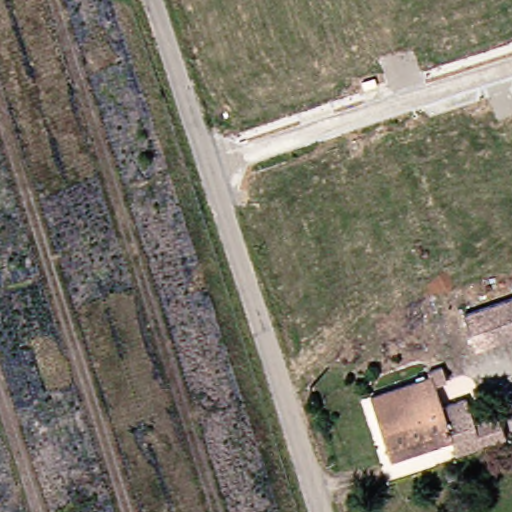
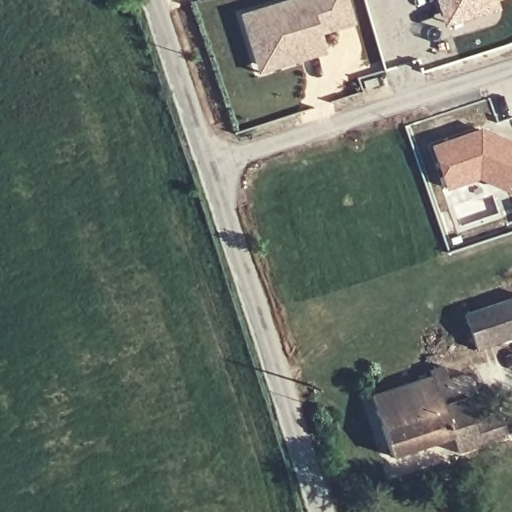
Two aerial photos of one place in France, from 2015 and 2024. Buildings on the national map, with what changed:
new [(255,61),(240,11),(278,0),(348,0),(355,21),(320,31),(325,50),(303,56),(277,65),(257,70),(255,61)]
new [(496,6),(484,10),(464,15),(446,21),(440,0),(494,0),(496,6)]
new [(478,179),(446,190),(430,145),(480,128),(512,142),(512,179),(506,191),(478,179)]
unchanged [(512,338),(479,349),(467,313),(512,298),(512,338)]
unchanged [(390,451),(369,389),(428,368),(427,365),(440,360),(445,374),(434,378),(441,400),(451,430),(390,451)]
unchanged [(465,392),(472,415),(496,407),(504,430),(457,446),(451,430),(441,400),(465,392)]

